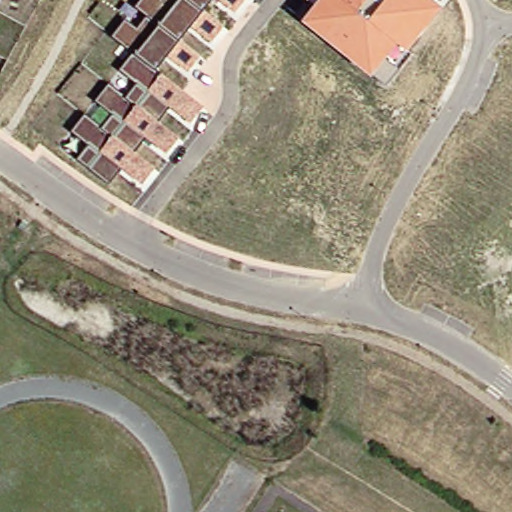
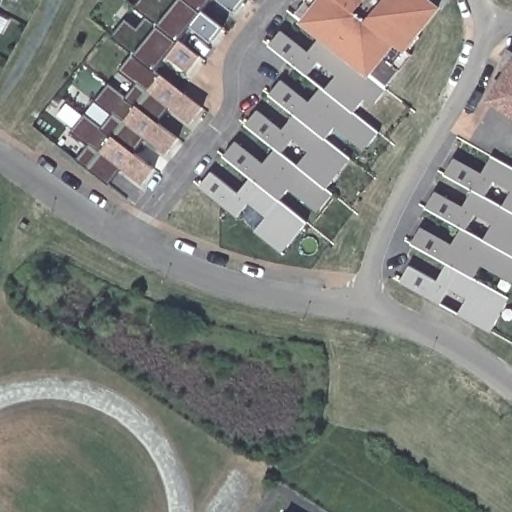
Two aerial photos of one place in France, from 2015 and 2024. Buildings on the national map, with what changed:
unchanged [(222,27),(210,43),(190,25),(181,40),(201,57),(188,74),(166,57),(155,70),(202,108),(191,124),(169,109),(158,123),(178,139),(165,154),(144,139),(133,153),(154,169),(141,185),(121,169),(107,185),(77,159),(89,146),(71,132),(84,116),(101,129),(112,115),(96,103),(109,85),(126,99),(137,85),(121,70),(136,56),(113,37),(126,21),(136,29),(146,17),(135,9),(142,0),(213,0),(203,11),(222,27)]
unchanged [(220,0),(248,0),(235,14),(220,0)]
unchanged [(396,64),(388,56),(369,79),(301,24),(313,7),(307,1),(308,0),(431,0),(441,8),(406,50),(396,64)]
new [(387,89),(373,106),(365,99),(354,111),(380,131),(365,150),(334,126),(325,138),(351,159),(327,188),(334,193),(318,212),(289,189),(280,200),(307,222),(283,254),(255,231),(266,217),(249,203),(238,218),(199,187),(212,171),(239,193),(250,178),(223,156),(236,141),(264,164),(276,149),(246,125),(259,109),(283,129),(294,115),(270,94),(282,79),(309,101),(320,87),(325,90),(337,75),(320,61),(307,75),(269,45),(283,29),(309,52),(319,39),(321,40),(369,79),(388,56),(396,64),(406,50),(413,55),(387,89)]
new [(505,73),(502,70),(508,48),(512,50),(512,118),(488,103),(505,73)]
new [(491,333),(399,283),(409,265),(437,281),(446,264),(411,244),(420,228),(452,245),(461,229),(426,209),(434,193),(462,208),(472,191),(444,175),(453,159),(481,174),(491,156),(512,168),(512,283),(504,279),(481,266),(474,278),(500,293),(510,298),(500,315),(491,333)]

